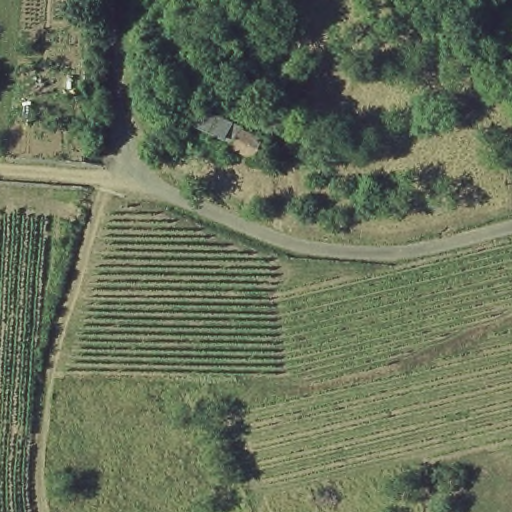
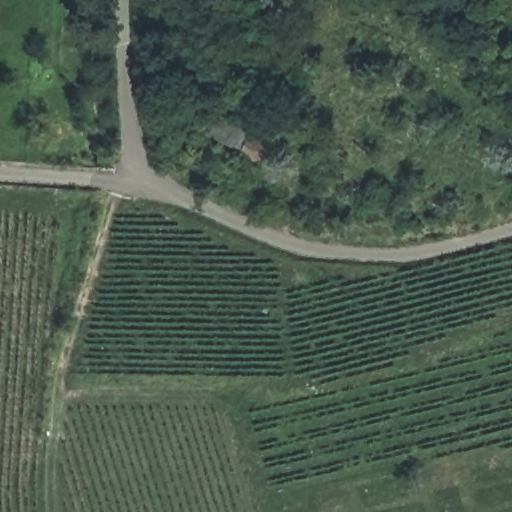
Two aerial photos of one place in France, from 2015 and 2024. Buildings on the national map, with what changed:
unchanged [(200,140),(212,119),(270,149),(258,171),(200,140)]

